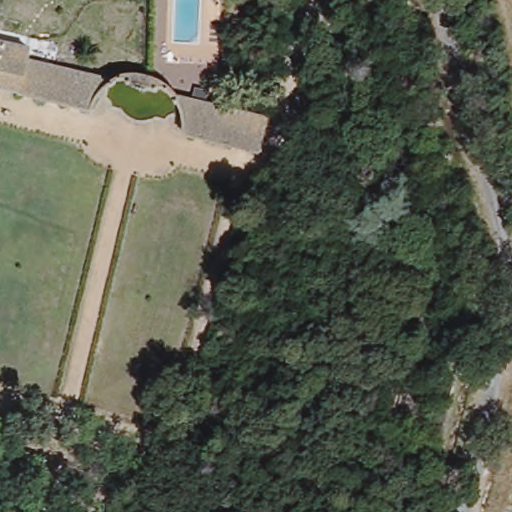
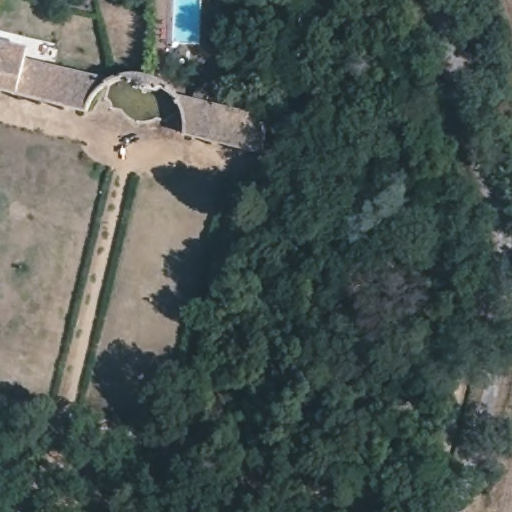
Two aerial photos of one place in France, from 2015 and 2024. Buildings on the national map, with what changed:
unchanged [(108,80),(119,77),(130,75),(142,75),(154,79),(167,85),(174,90),(179,95),(180,97),(270,119),(260,156),(184,138),(185,125),(184,114),(179,107),(177,105),(173,101),(168,95),(163,92),(159,96),(129,90),(126,85),(116,85),(110,86),(104,90),(97,95),(92,100),(88,109),(86,114),(0,94),(0,55),(108,80)]
unchanged [(296,152),(292,164),(287,162),(289,151),(296,152)]
unchanged [(415,502),(420,479),(444,484),(437,507),(415,502)]

